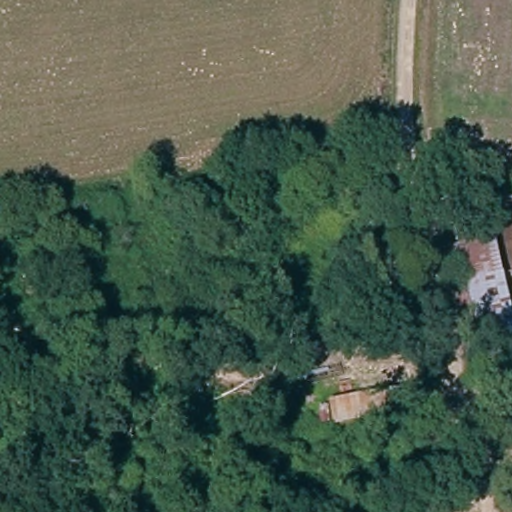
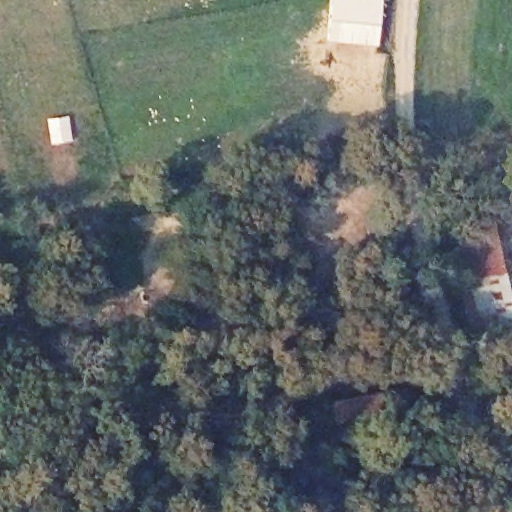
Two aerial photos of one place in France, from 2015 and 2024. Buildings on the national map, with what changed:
new [(326,42),(330,0),(381,0),(376,47),(326,42)]
unchanged [(512,299),(467,310),(448,231),(493,220),(512,297),(512,299)]

